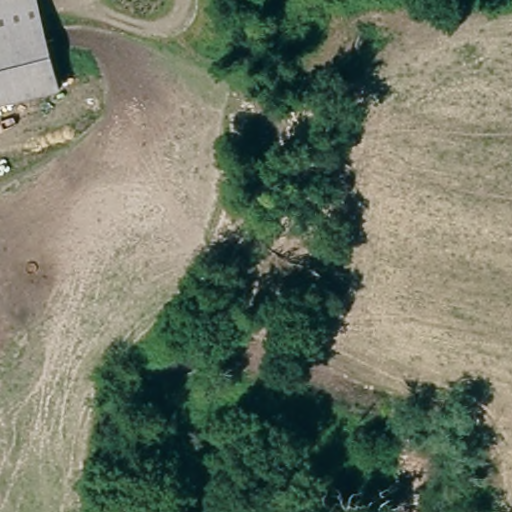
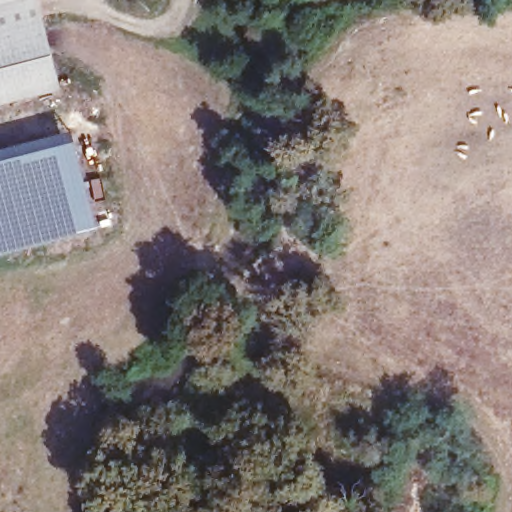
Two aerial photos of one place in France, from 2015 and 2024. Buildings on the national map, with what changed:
unchanged [(0,108),(0,0),(42,0),(66,91),(0,108)]
new [(99,219),(101,227),(21,251),(0,256),(0,157),(73,139),(96,220),(99,219)]
unchanged [(437,512),(392,512),(399,437),(443,441),(437,512)]

